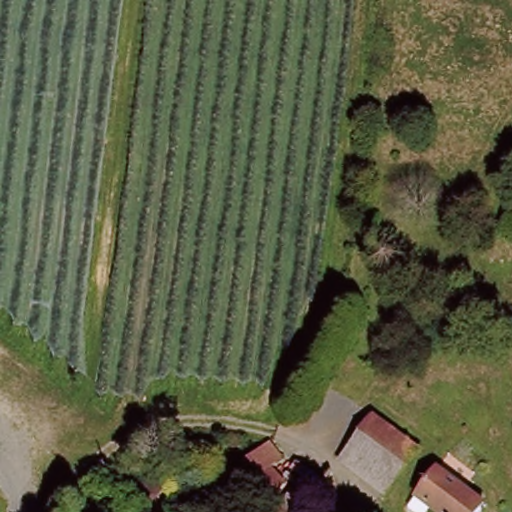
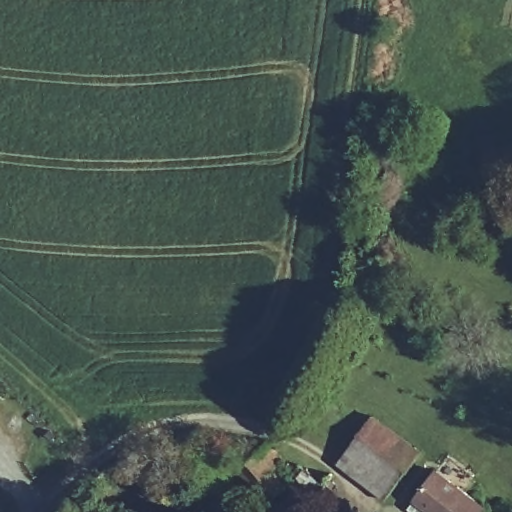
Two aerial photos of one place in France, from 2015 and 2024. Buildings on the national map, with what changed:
unchanged [(335,463),(358,430),(368,415),(417,451),(382,497),(335,463)]
unchanged [(234,470),(255,453),(270,444),(285,462),(270,473),(279,486),(260,502),(234,470)]
unchanged [(476,512),(437,512),(411,493),(432,467),(482,503),(476,512)]
unchanged [(291,488),(307,500),(298,512),(274,512),(291,488)]

